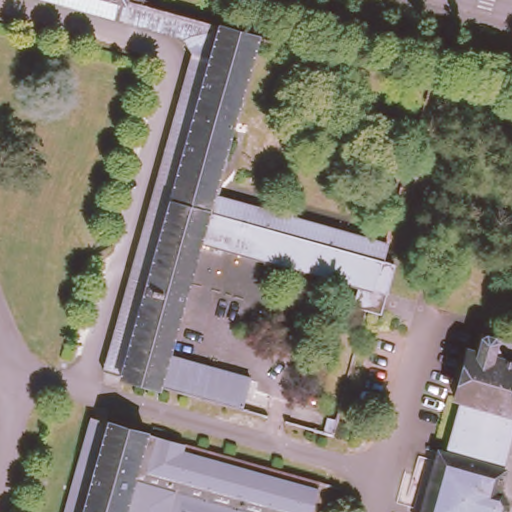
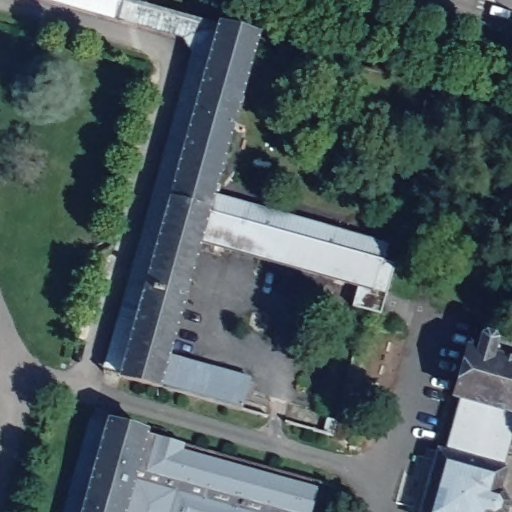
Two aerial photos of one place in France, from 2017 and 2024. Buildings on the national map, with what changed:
unchanged [(185,37),(51,0),(139,0),(191,15),(185,37)]
unchanged [(94,376),(185,37),(191,15),(212,21),(114,381),(94,376)]
unchanged [(159,360),(242,383),(234,415),(151,392),(114,381),(212,21),(250,31),(205,198),(372,246),(367,262),(380,266),(372,295),(366,316),(339,308),(344,288),(190,246),(159,360)]
unchanged [(434,438),(445,442),(458,392),(448,390),(462,340),(470,341),(475,325),(492,330),(487,347),(512,355),(512,437),(505,464),(499,482),(505,490),(506,499),(503,508),(499,511),(498,512),(414,512),(434,438)]
unchanged [(86,419),(186,445),(183,451),(317,487),(310,512),(59,512),(86,419)]
unchanged [(332,435),(327,450),(317,448),(322,432),(332,435)]

